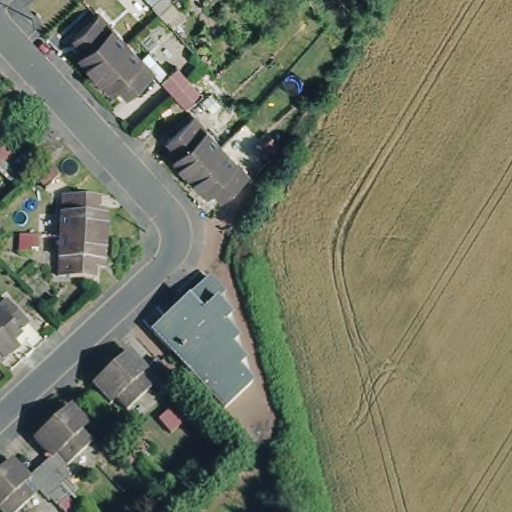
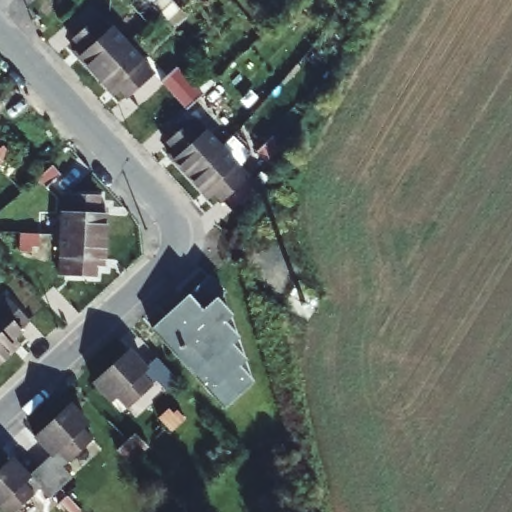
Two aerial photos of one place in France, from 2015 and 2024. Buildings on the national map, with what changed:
unchanged [(171,0),(183,14),(169,28),(161,19),(153,10),(165,0),(171,0)]
unchanged [(82,63),(88,57),(74,44),(102,19),(129,48),(96,78),(82,63)]
unchanged [(129,48),(156,76),(128,101),(118,90),(111,94),(96,78),(129,48)]
unchanged [(176,100),(164,86),(180,71),(192,85),(203,98),(206,100),(190,114),(187,112),(176,100)]
unchanged [(176,165),(182,159),(171,148),(198,123),(224,151),(192,182),(176,165)]
unchanged [(258,154),(274,140),(286,154),(270,169),(258,154)]
unchanged [(213,192),(206,196),(192,182),(224,151),(249,179),(224,204),(213,192)]
unchanged [(0,174),(0,152),(3,155),(6,153),(15,162),(2,176),(0,174)]
unchanged [(70,183),(56,195),(48,186),(61,174),(70,183)]
unchanged [(106,210),(113,212),(111,232),(68,232),(70,193),(106,194),(106,210)]
unchanged [(109,254),(103,254),(102,272),(65,270),(68,232),(111,232),(109,254)]
unchanged [(34,257),(34,263),(20,262),(21,241),(41,241),(40,257),(34,257)]
unchanged [(226,409),(154,330),(209,279),(225,297),(254,384),(226,409)]
unchanged [(2,350),(7,356),(0,362),(0,303),(23,327),(12,337),(14,339),(2,350)]
unchanged [(111,403),(94,386),(112,369),(130,353),(146,371),(158,359),(170,372),(153,388),(140,399),(128,409),(116,398),(111,403)]
unchanged [(166,407),(171,403),(181,414),(166,428),(153,413),(163,404),(166,407)]
unchanged [(53,458),(35,439),(53,423),(71,408),(87,425),(81,431),(93,442),(81,454),(69,465),(64,469),(78,484),(65,496),(53,507),(39,493),(35,497),(22,508),(18,512),(5,512),(0,507),(0,473),(13,462),(29,479),(40,469),(53,458)]
unchanged [(128,444),(138,434),(150,448),(140,458),(132,466),(118,453),(128,444)]
unchanged [(59,507),(68,498),(80,512),(64,512),(59,507)]

